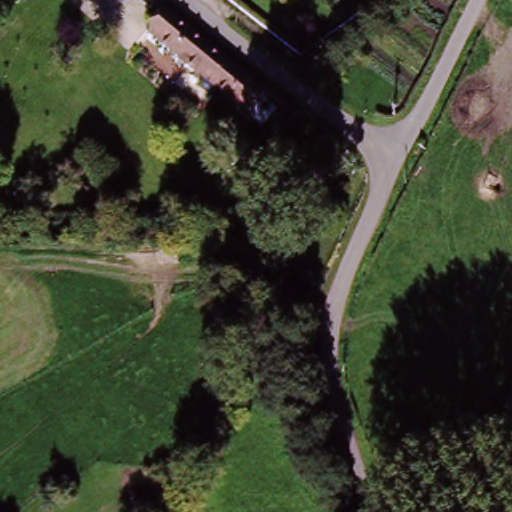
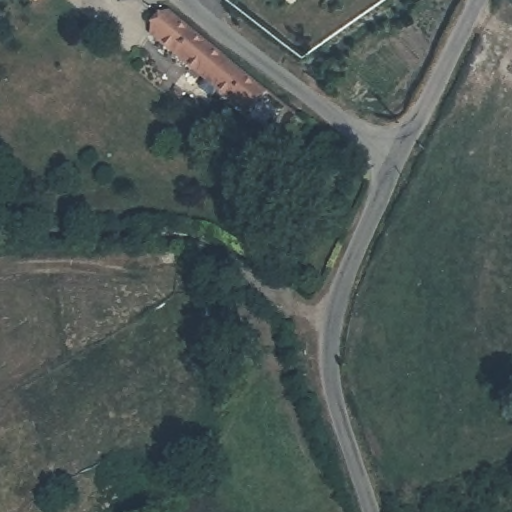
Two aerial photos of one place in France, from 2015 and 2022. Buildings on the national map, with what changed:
unchanged [(41,0),(60,0),(55,8),(41,0)]
unchanged [(298,0),(295,4),(290,0),(298,0)]
unchanged [(263,94),(252,108),(167,43),(177,29),(263,94)]

